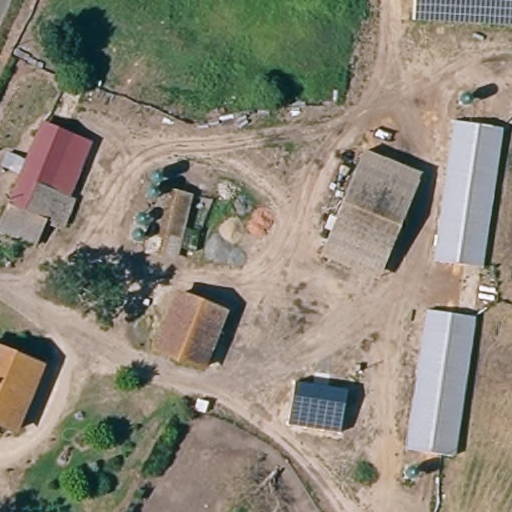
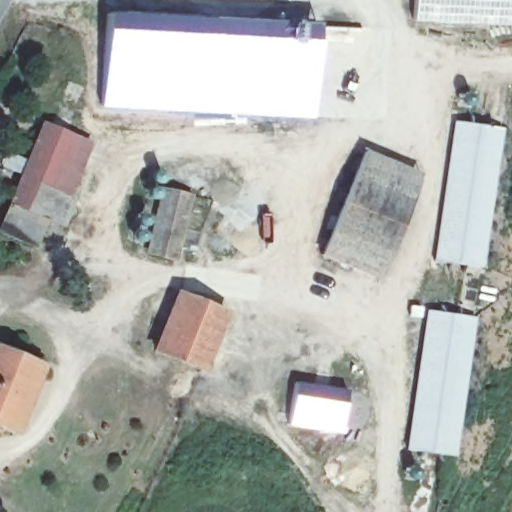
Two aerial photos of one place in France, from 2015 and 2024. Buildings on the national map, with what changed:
unchanged [(415,0),(512,0),(512,26),(414,21),(415,0)]
new [(107,13),(315,22),(311,113),(103,101),(107,13)]
demolished [(382,55),(371,119),(347,116),(357,51),(382,55)]
unchanged [(507,136),(484,271),(434,263),(454,126),(507,136)]
unchanged [(34,208),(12,197),(45,128),(67,139),(34,208)]
unchanged [(63,223),(50,216),(34,208),(67,139),(97,153),(63,223)]
unchanged [(397,163),(422,176),(410,204),(373,283),(311,254),(363,147),(397,163)]
unchanged [(0,222),(12,197),(34,208),(50,216),(35,245),(11,233),(0,227),(0,222)]
unchanged [(190,212),(168,260),(135,245),(159,198),(190,212)]
demolished [(255,232),(237,277),(214,267),(234,223),(255,232)]
demolished [(327,289),(304,347),(258,331),(280,271),(327,289)]
unchanged [(203,369),(153,346),(177,294),(224,316),(203,369)]
unchanged [(457,457),(408,449),(418,387),(431,314),(461,318),(480,320),(475,348),(457,457)]
unchanged [(17,434),(0,427),(0,350),(45,370),(17,434)]
unchanged [(289,425),(296,384),(346,391),(341,432),(289,425)]

